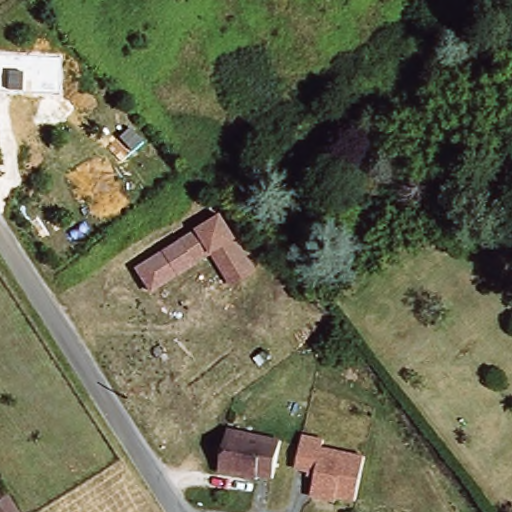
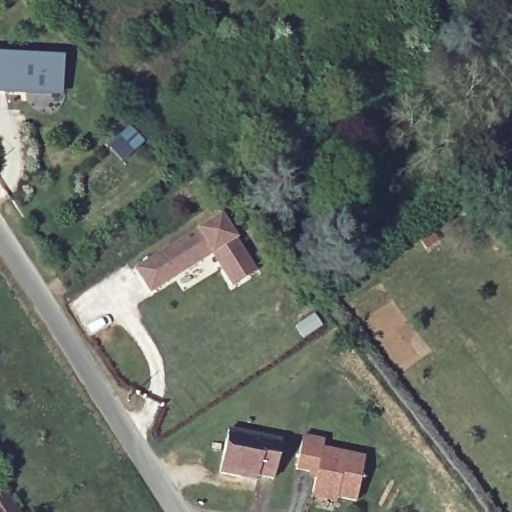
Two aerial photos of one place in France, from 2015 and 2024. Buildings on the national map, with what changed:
new [(66,59),(65,95),(0,91),(0,54),(4,54),(66,59)]
new [(132,127),(146,142),(134,153),(123,161),(111,147),(121,137),(132,127)]
unchanged [(232,290),(212,259),(149,298),(134,268),(226,212),(261,273),(232,290)]
unchanged [(227,466),(235,424),(287,435),(282,470),(266,468),(265,473),(227,466)]
unchanged [(317,475),(298,472),(303,437),(326,441),(324,451),(369,459),(362,503),(340,499),(340,505),(314,500),(314,494),(317,475)]
unchanged [(11,497),(19,512),(0,512),(0,496),(3,501),(11,497)]

